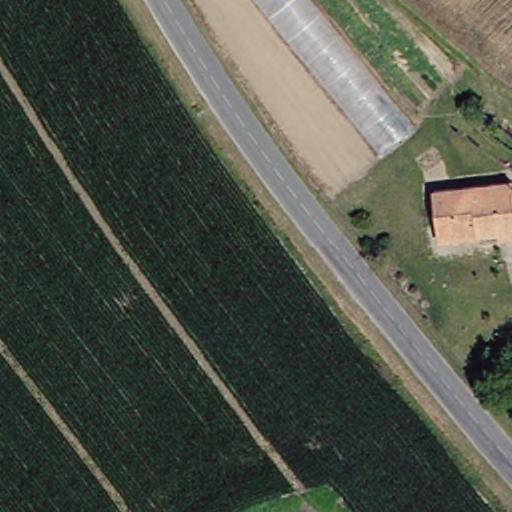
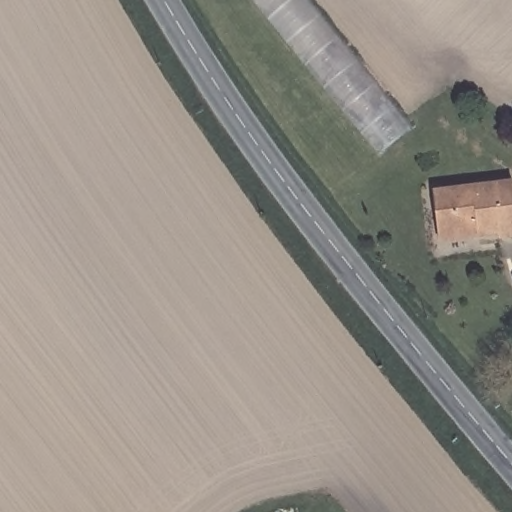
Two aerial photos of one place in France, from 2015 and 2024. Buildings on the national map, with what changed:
unchanged [(312,0),(415,125),(379,154),(253,0),(312,0)]
unchanged [(442,224),(440,190),(512,185),(512,234),(504,235),(503,229),(482,231),(443,233),(442,224)]

